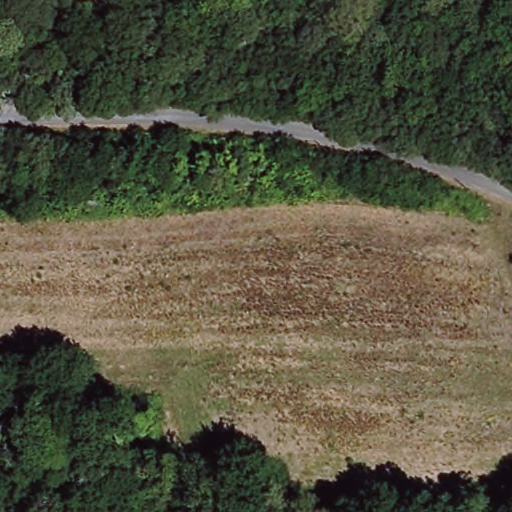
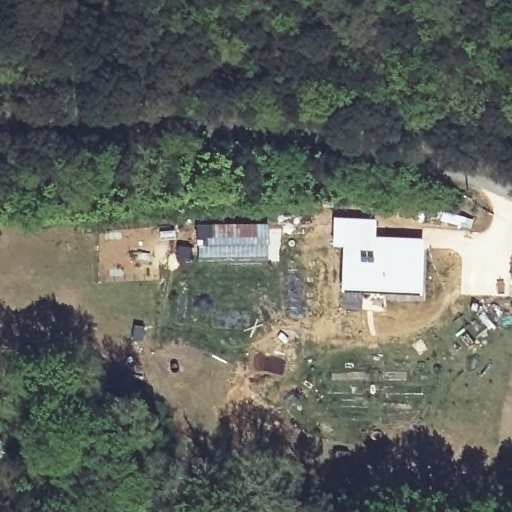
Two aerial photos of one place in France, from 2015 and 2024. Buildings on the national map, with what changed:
new [(375,239),(424,239),(422,294),(341,290),(342,248),(334,248),(334,219),(377,221),(375,239)]
new [(269,255),(198,257),(197,229),(266,226),(269,255)]

